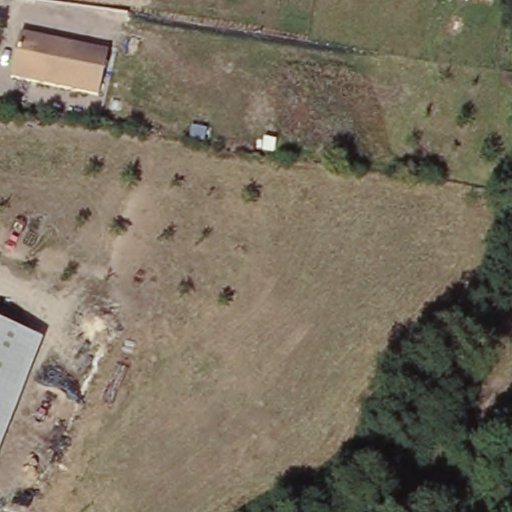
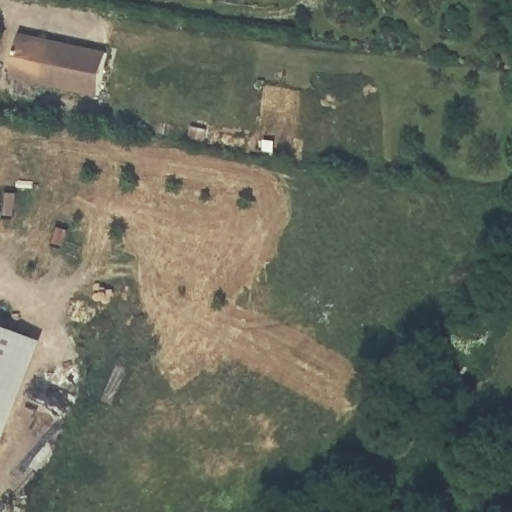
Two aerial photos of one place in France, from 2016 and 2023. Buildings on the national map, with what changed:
unchanged [(101,93),(12,76),(20,31),(110,46),(101,93)]
unchanged [(0,318),(45,336),(0,453),(0,318)]

